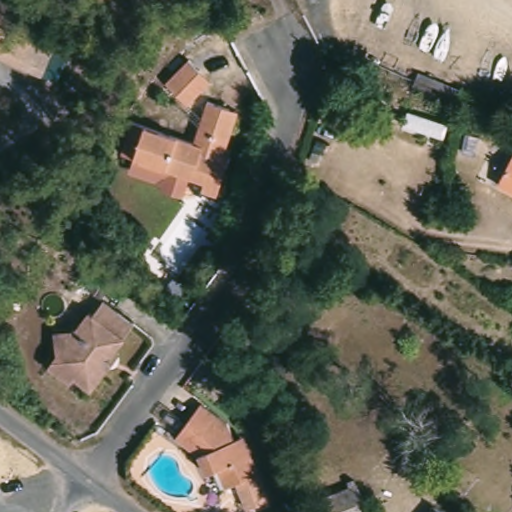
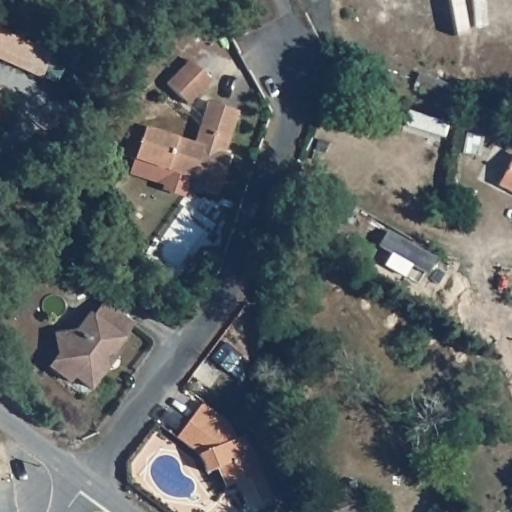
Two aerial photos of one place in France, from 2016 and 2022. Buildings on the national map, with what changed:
unchanged [(417,74),(459,91),(452,110),(409,93),(417,74)]
unchanged [(164,188),(165,182),(130,170),(133,161),(120,156),(131,123),(193,143),(207,103),(237,113),(223,154),(229,157),(227,166),(216,196),(201,192),(199,197),(194,196),(189,189),(191,181),(187,179),(182,194),(164,188)]
unchanged [(497,191),(512,161),(512,162),(512,198),(497,191)]
unchanged [(177,301),(164,292),(174,280),(185,289),(177,301)]
unchanged [(103,374),(85,397),(69,385),(64,390),(41,373),(51,360),(48,338),(69,335),(84,316),(88,320),(98,306),(110,316),(129,330),(119,344),(111,353),(116,358),(103,374)]
unchanged [(236,360),(226,372),(210,359),(220,347),(236,360)]
unchanged [(245,512),(241,512),(231,489),(220,493),(213,474),(203,478),(194,460),(172,443),(195,410),(224,430),(230,444),(239,441),(242,448),(265,504),(245,512)]
unchanged [(347,483),(354,481),(367,512),(309,512),(323,507),(319,498),(311,480),(334,468),(343,488),(349,486),(347,483)]
unchanged [(434,512),(432,512),(433,511),(434,512)]

